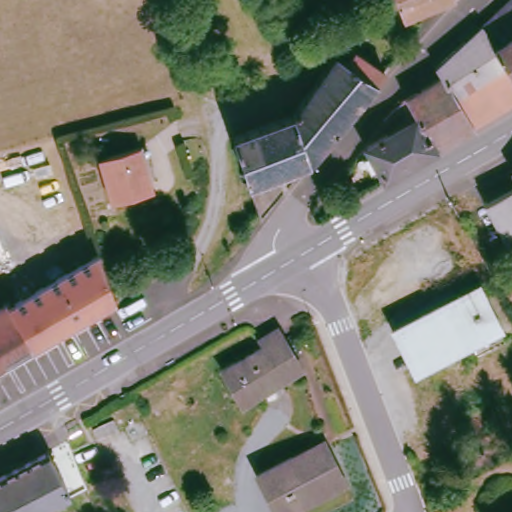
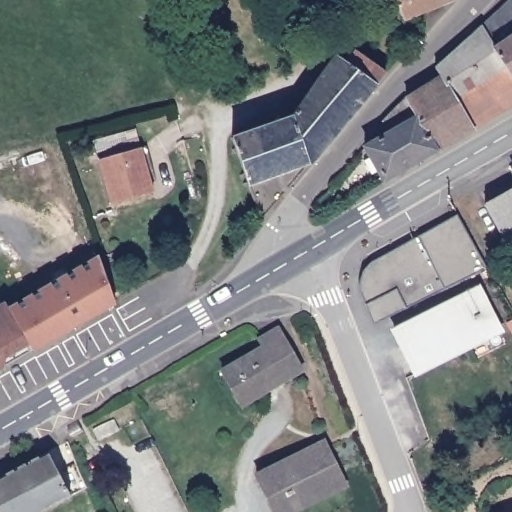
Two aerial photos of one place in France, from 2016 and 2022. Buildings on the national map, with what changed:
unchanged [(403,16),(396,0),(444,0),(403,16)]
unchanged [(508,0),(512,0),(512,74),(481,24),(508,0)]
unchanged [(512,105),(473,127),(442,75),(436,65),(481,24),(512,74),(512,105)]
unchanged [(292,114),(332,50),(342,58),(350,48),(382,74),(373,84),(308,160),(292,114)]
unchanged [(473,127),(437,148),(418,116),(417,117),(405,98),(442,75),(473,127)]
unchanged [(405,98),(417,117),(418,116),(437,148),(388,177),(383,180),(364,146),(405,97),(405,98)]
unchanged [(308,160),(258,219),(233,134),(292,114),(308,160)]
unchanged [(95,155),(137,143),(150,187),(108,200),(95,155)]
unchanged [(512,168),(512,178),(508,170),(512,168)]
unchanged [(512,184),(512,258),(480,201),(512,184)]
new [(365,305),(358,290),(359,278),(364,268),(420,235),(457,215),(485,266),(405,307),(372,323),(365,305)]
unchanged [(99,253),(113,300),(113,301),(107,305),(33,347),(28,339),(26,335),(9,306),(99,253)]
unchanged [(477,287),(500,328),(419,370),(397,328),(477,287)]
unchanged [(9,306),(26,335),(28,339),(3,353),(1,363),(0,364),(0,306),(7,302),(9,306)]
unchanged [(239,403),(218,368),(258,345),(254,336),(275,325),(280,333),(300,367),(239,403)]
unchanged [(115,418),(120,428),(100,437),(95,427),(115,418)]
unchanged [(87,487),(37,512),(0,512),(0,476),(68,440),(87,487)]
unchanged [(342,485),(291,512),(270,512),(253,475),(320,440),(342,485)]
unchanged [(467,512),(435,512),(435,511),(460,499),(467,512)]

